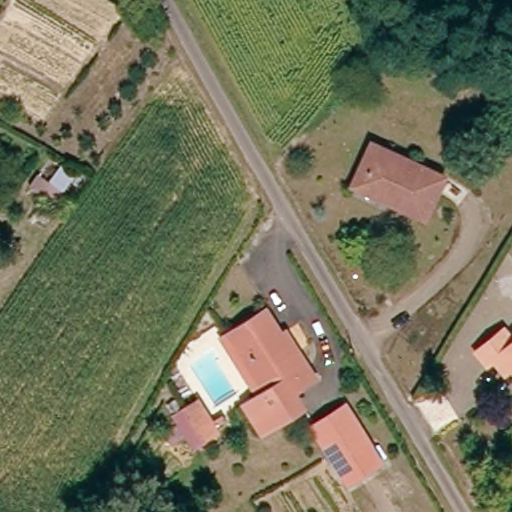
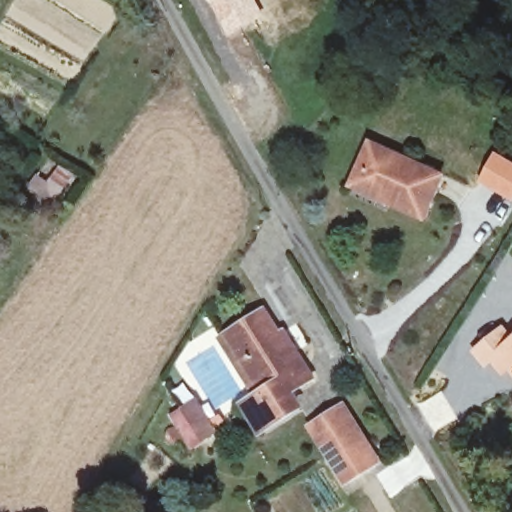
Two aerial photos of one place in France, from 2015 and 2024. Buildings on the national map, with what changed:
new [(229,35),(211,0),(257,0),(265,15),(229,35)]
unchanged [(386,201),(349,181),(368,140),(378,145),(438,179),(420,218),(386,201)]
new [(512,201),(480,182),(497,153),(512,162),(512,201)]
unchanged [(286,361),(296,356),(312,385),(286,399),(297,419),(257,440),(239,407),(254,399),(220,338),(228,333),(262,315),(286,361)]
unchanged [(505,374),(491,359),(484,364),(474,351),(502,327),(512,338),(512,368),(511,368),(505,374)]
unchanged [(197,433),(184,441),(163,405),(177,396),(197,433)]
unchanged [(343,483),(330,460),(311,427),(341,409),(359,443),(371,467),(343,483)]

